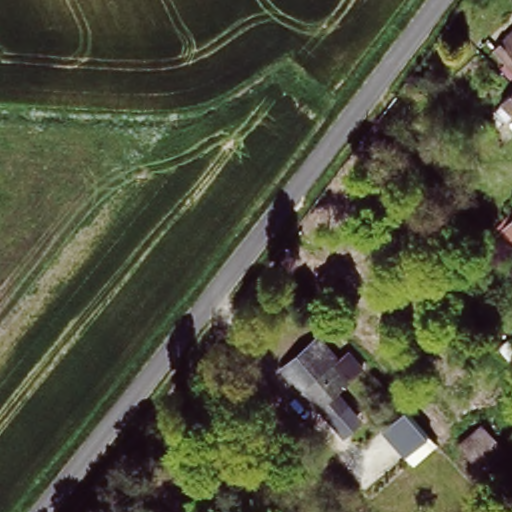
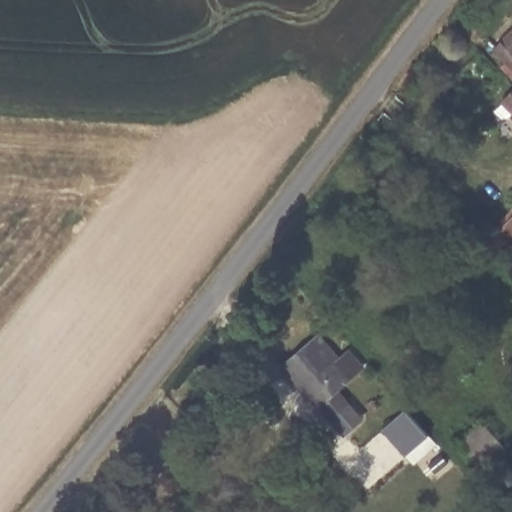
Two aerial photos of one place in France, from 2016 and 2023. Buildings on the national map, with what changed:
unchanged [(506,55),(512,50),(512,62),(506,55)]
unchanged [(505,107),(512,100),(512,114),(505,107)]
unchanged [(511,251),(494,235),(512,215),(512,250),(511,251)]
unchanged [(331,370),(347,355),(362,373),(335,400),(346,412),(332,425),(309,400),(305,404),(278,374),(310,348),(331,370)]
unchanged [(426,432),(402,451),(379,425),(402,405),(426,432)]
unchanged [(456,447),(487,423),(510,455),(482,479),(456,447)]

